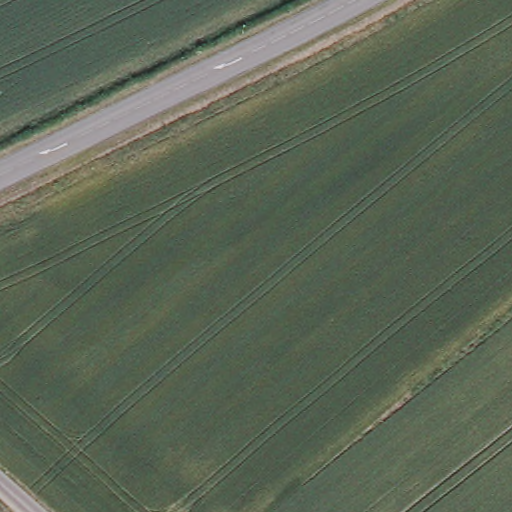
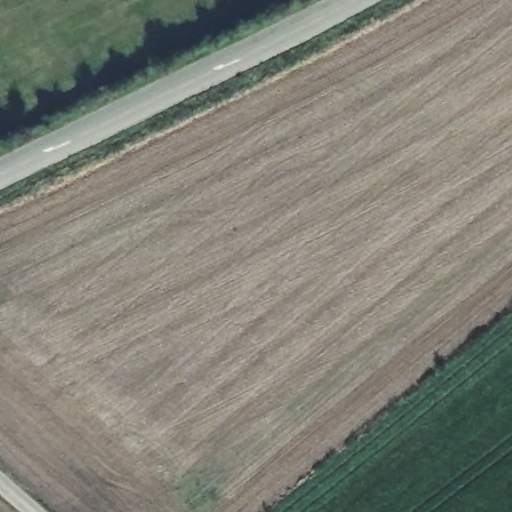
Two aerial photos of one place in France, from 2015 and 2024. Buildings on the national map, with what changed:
[]

